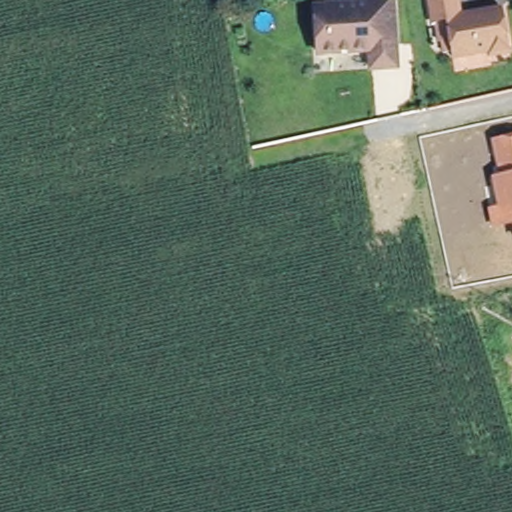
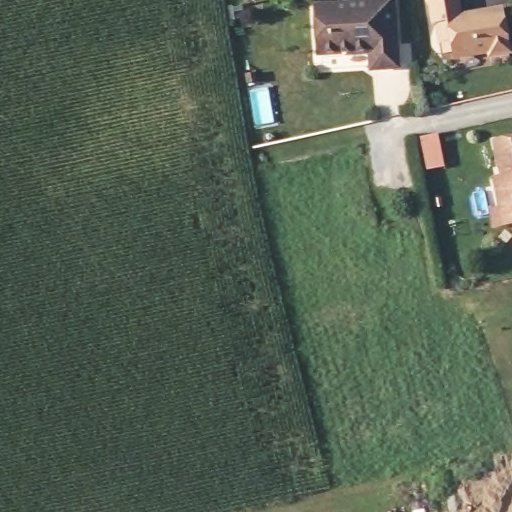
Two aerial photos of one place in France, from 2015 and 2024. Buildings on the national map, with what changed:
unchanged [(374,63),(373,45),(321,47),(318,1),(340,0),(396,0),(398,40),(399,62),(374,63)]
unchanged [(462,23),(503,16),(510,60),(490,63),(488,55),(443,61),(438,29),(432,30),(428,0),(458,0),(462,23)]
unchanged [(512,224),(490,228),(487,207),(497,205),(491,174),(498,172),(492,139),(512,135),(512,224)]

